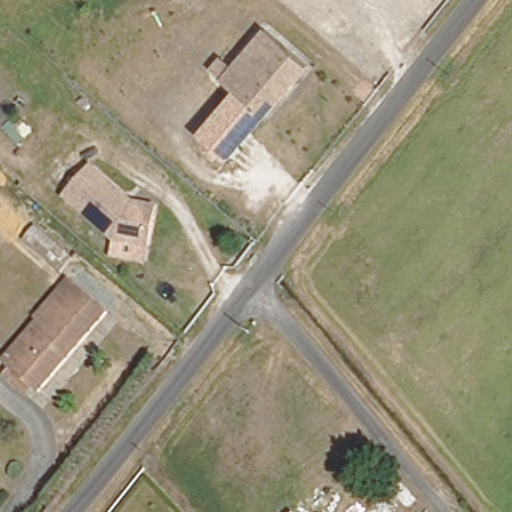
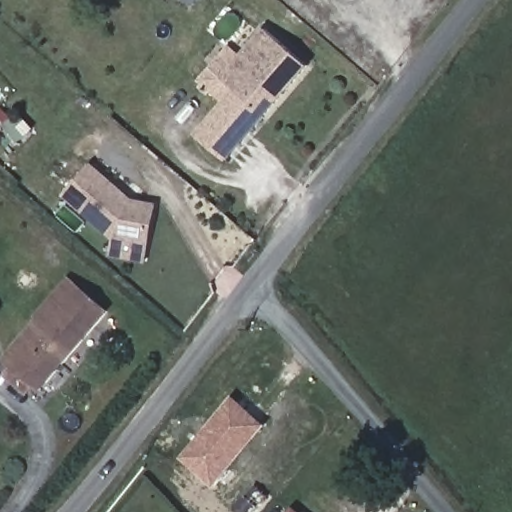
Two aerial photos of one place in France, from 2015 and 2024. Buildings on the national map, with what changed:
unchanged [(171,0),(206,0),(186,16),(171,0)]
unchanged [(188,102),(212,122),(237,96),(211,73),(255,23),(298,57),(305,47),(315,57),(218,171),(167,126),(188,102)]
unchanged [(130,204),(153,209),(145,246),(112,240),(65,197),(91,168),(130,204)]
unchanged [(0,379),(8,370),(3,365),(39,322),(32,317),(59,285),(66,276),(81,287),(105,307),(37,393),(35,391),(26,400),(0,379)]
new [(179,458),(231,397),(267,425),(214,488),(179,458)]

